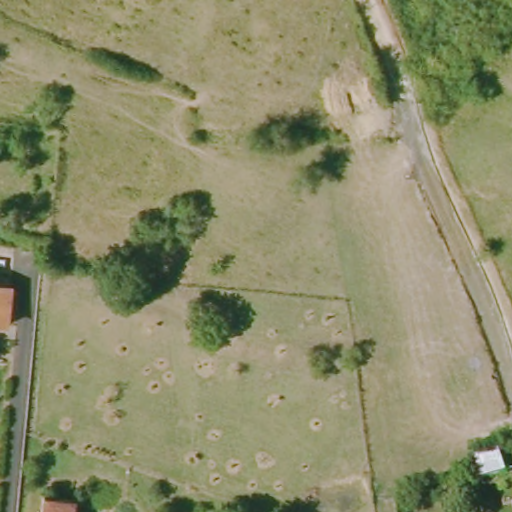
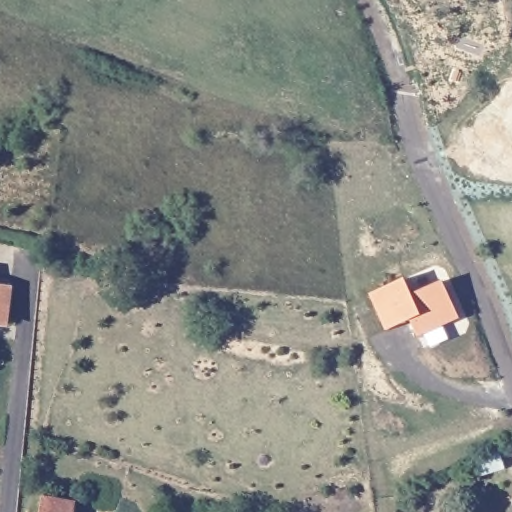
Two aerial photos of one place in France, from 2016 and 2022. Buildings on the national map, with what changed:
new [(418,338),(413,320),(388,331),(371,295),(405,279),(413,296),(444,282),(459,319),(418,338)]
unchanged [(2,322),(0,322),(0,285),(5,285),(2,322)]
unchanged [(512,457),(512,488),(505,459),(512,457)]
unchanged [(59,512),(28,512),(30,497),(61,498),(59,512)]

